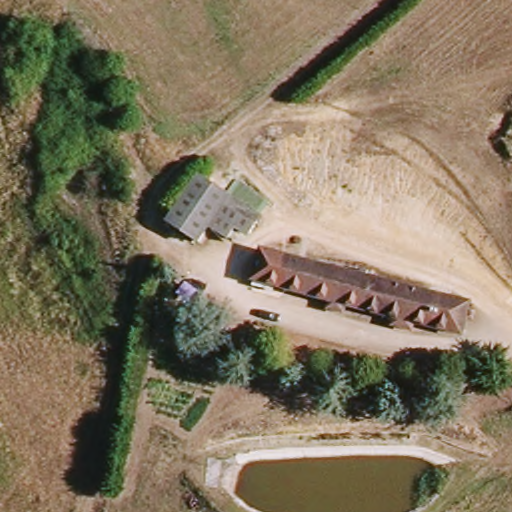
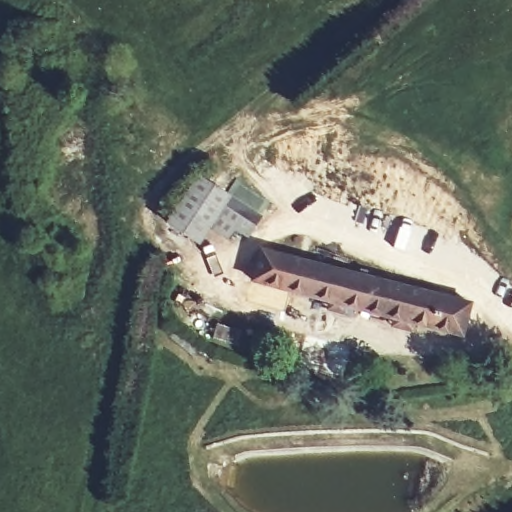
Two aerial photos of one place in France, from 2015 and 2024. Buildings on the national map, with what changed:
unchanged [(240,224),(230,244),(206,232),(198,249),(162,230),(175,213),(207,170),(231,189),(240,178),(268,199),(262,212),(252,230),(240,224)]
unchanged [(398,324),(350,310),(347,319),(332,314),(335,306),(278,288),(257,282),(260,271),(266,249),(475,311),(466,341),(465,344),(436,334),(418,330),(415,338),(395,332),(398,324)]

